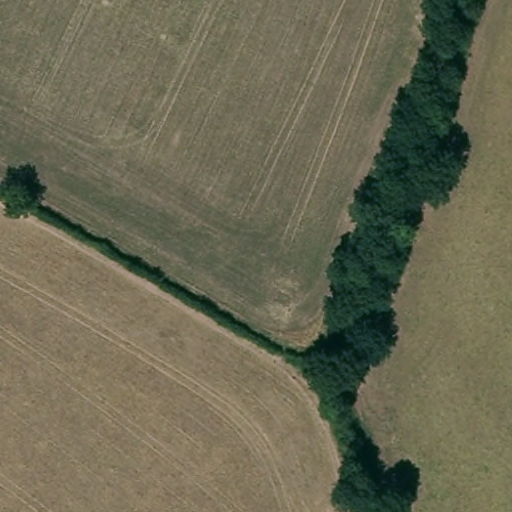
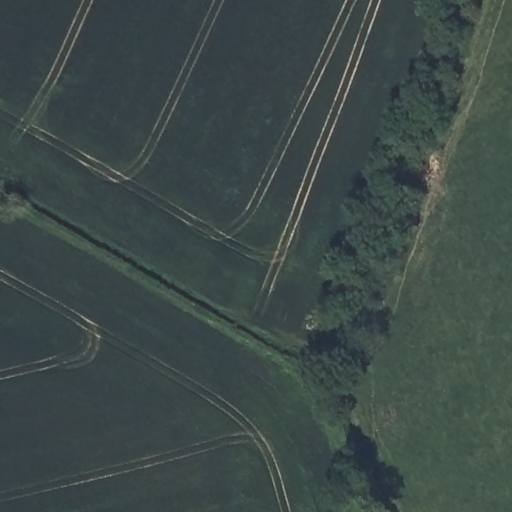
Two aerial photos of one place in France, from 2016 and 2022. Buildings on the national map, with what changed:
[]

